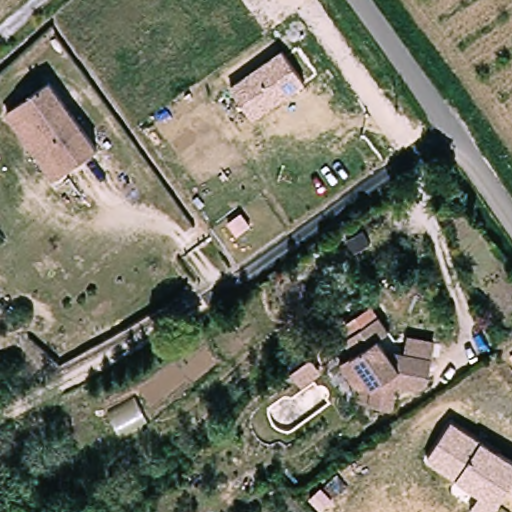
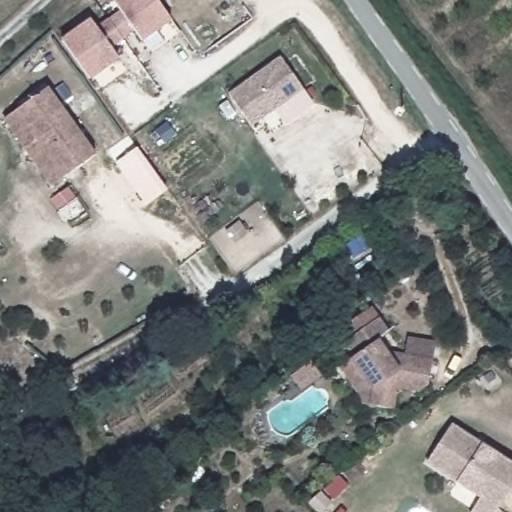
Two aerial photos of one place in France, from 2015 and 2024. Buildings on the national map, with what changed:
new [(112,6),(122,0),(150,0),(168,25),(141,46),(131,35),(120,44),(105,24),(118,16),(112,6)]
new [(88,24),(95,32),(105,24),(120,44),(108,52),(116,63),(87,84),(59,44),(88,24)]
unchanged [(302,89),(251,126),(227,95),(279,58),(302,89)]
unchanged [(41,90),(91,155),(61,177),(14,111),(41,90)]
unchanged [(14,111),(61,177),(49,186),(0,121),(14,111)]
unchanged [(339,371),(348,365),(352,361),(341,347),(375,323),(386,338),(402,361),(404,346),(432,349),(430,364),(427,389),(417,394),(396,392),(393,414),(369,410),(357,408),(359,398),(339,371)]
unchanged [(302,371),(311,383),(291,398),(282,386),(302,371)]
unchanged [(481,443),(512,463),(512,486),(496,512),(471,512),(479,499),(456,482),(426,463),(452,424),(481,443)]

